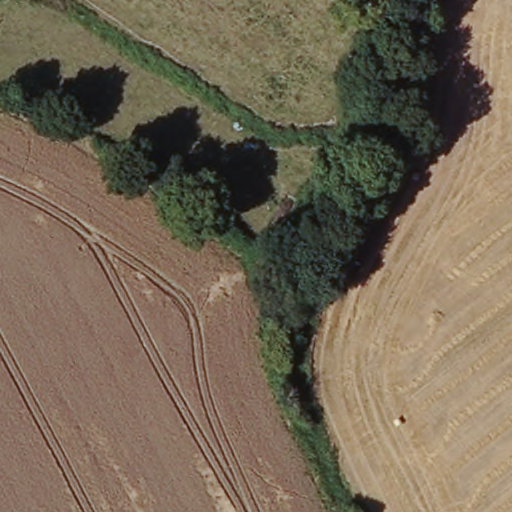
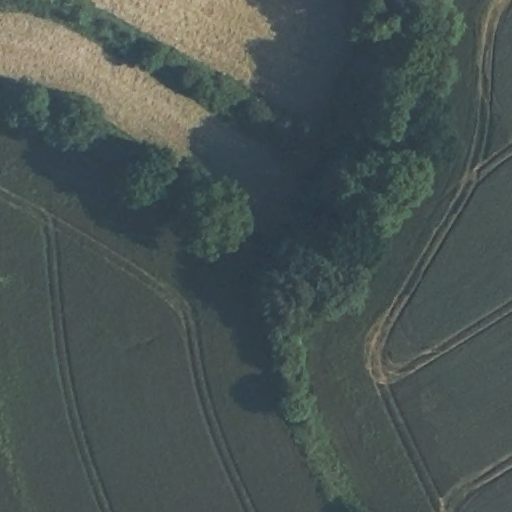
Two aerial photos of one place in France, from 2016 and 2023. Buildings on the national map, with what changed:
[]

